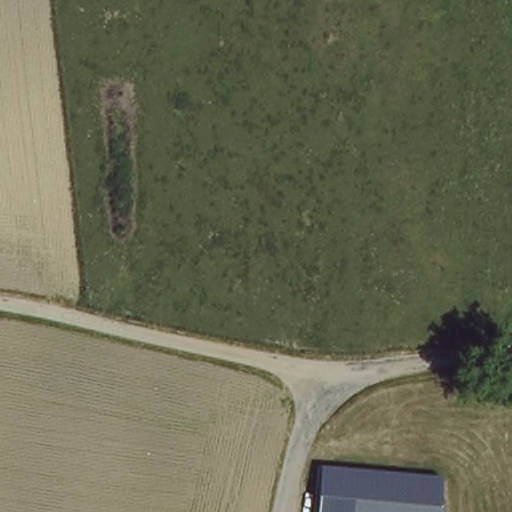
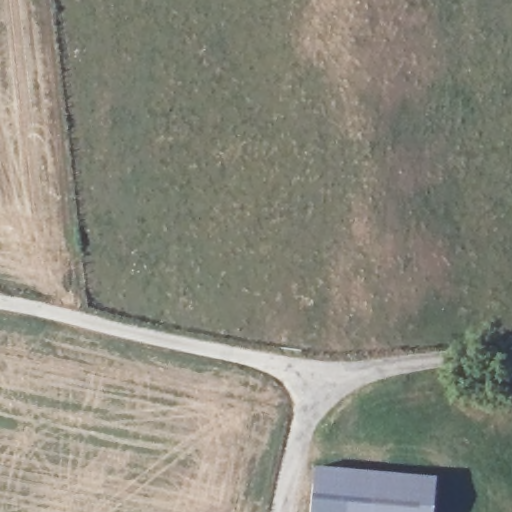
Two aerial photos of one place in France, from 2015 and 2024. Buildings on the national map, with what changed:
unchanged [(412,481),(402,512),(309,512),(326,456),(412,481)]
unchanged [(434,512),(402,512),(412,481),(441,490),(434,512)]

